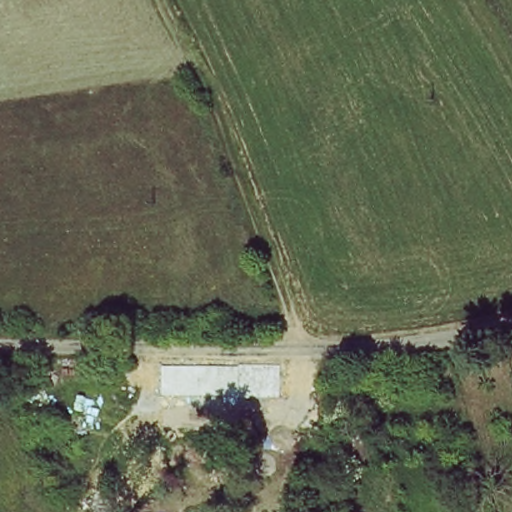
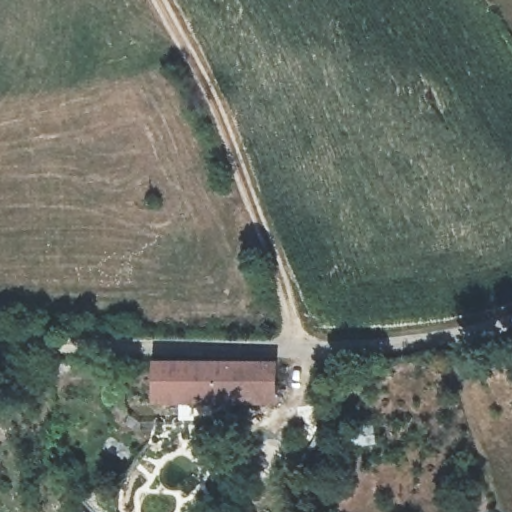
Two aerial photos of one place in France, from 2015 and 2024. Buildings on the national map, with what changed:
new [(155,404),(155,360),(278,361),(278,403),(155,404)]
demolished [(150,402),(149,364),(292,365),(292,396),(292,398),(150,402)]

